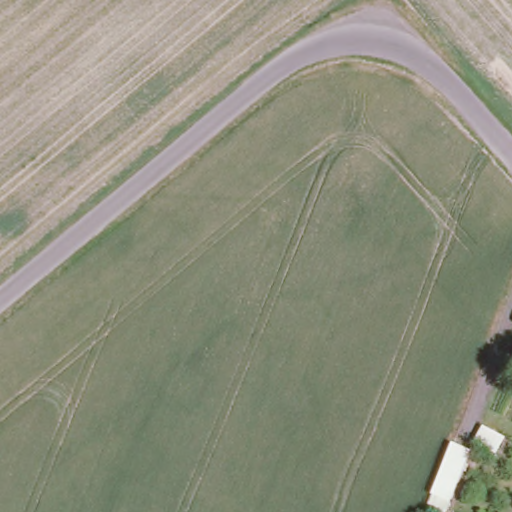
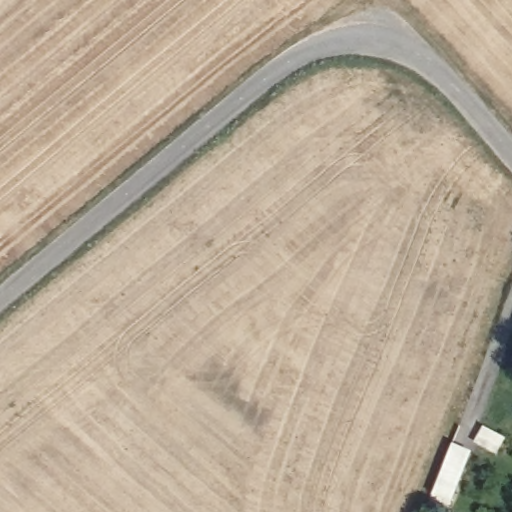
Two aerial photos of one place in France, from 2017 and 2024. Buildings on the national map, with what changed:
unchanged [(450,446),(468,452),(448,502),(430,494),(450,446)]

